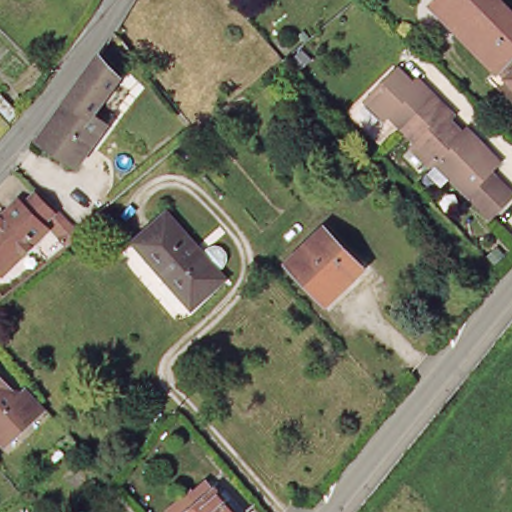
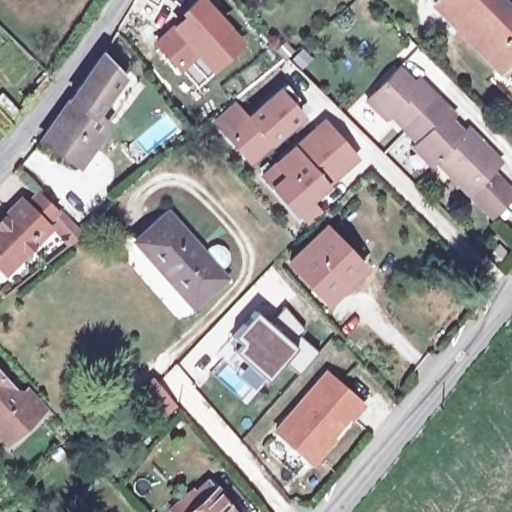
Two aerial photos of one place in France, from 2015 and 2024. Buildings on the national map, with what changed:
new [(206,0),(246,42),(213,72),(196,55),(178,71),(151,41),(194,0),(206,0)]
unchanged [(446,0),(494,0),(512,18),(512,64),(499,76),(484,60),(494,50),(474,27),(463,38),(435,11),(446,0)]
unchanged [(117,87),(95,117),(108,127),(77,167),(41,140),(88,77),(101,56),(108,64),(118,55),(124,62),(128,67),(118,75),(123,80),(117,87)]
unchanged [(391,119),(387,123),(367,104),(397,74),(413,91),(409,95),(414,100),(423,91),(434,102),(404,133),(391,119)]
unchanged [(508,85),(512,80),(512,89),(508,85)]
new [(298,97),(292,102),(301,114),(251,160),(228,135),(216,121),(235,104),(248,117),(286,84),(298,97)]
unchanged [(4,129),(0,124),(0,101),(5,97),(13,105),(4,112),(10,119),(13,121),(4,129)]
unchanged [(448,115),(438,124),(443,129),(448,124),(463,139),(438,166),(433,170),(415,152),(419,147),(404,133),(434,102),(448,115)]
new [(316,128),(326,140),(335,131),(355,154),(312,192),(314,194),(296,211),(264,175),(316,128)]
unchanged [(483,211),(472,199),(438,166),(463,139),(468,135),(481,148),(490,157),(502,169),(493,177),(503,189),(512,197),(512,203),(494,222),(483,211)]
unchanged [(0,266),(0,225),(18,205),(24,211),(37,197),(55,214),(43,227),(46,230),(7,272),(0,266)]
unchanged [(169,214),(226,277),(194,305),(138,241),(169,214)]
unchanged [(326,226),(364,267),(329,301),(291,259),(326,226)]
new [(240,342),(233,336),(254,312),(269,323),(284,305),(303,328),(299,332),(318,349),(299,371),(284,356),(265,378),(233,350),(240,342)]
new [(324,368),(364,403),(335,437),(338,438),(313,467),(269,431),(324,368)]
new [(177,407),(158,425),(134,392),(153,377),(177,407)]
unchanged [(30,394),(46,412),(4,448),(0,444),(0,378),(21,402),(30,394)]
unchanged [(215,488),(218,486),(240,512),(191,512),(200,505),(193,496),(209,482),(215,488)]

